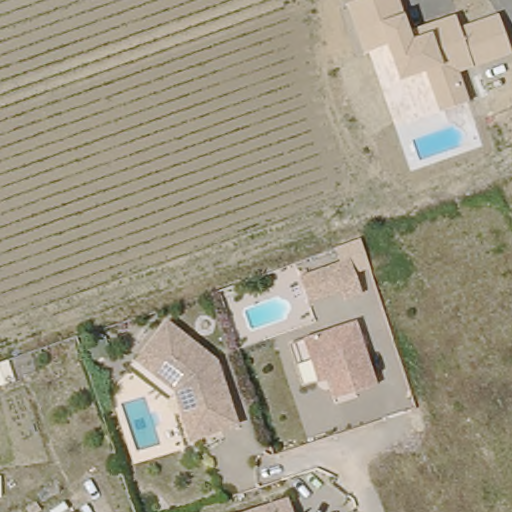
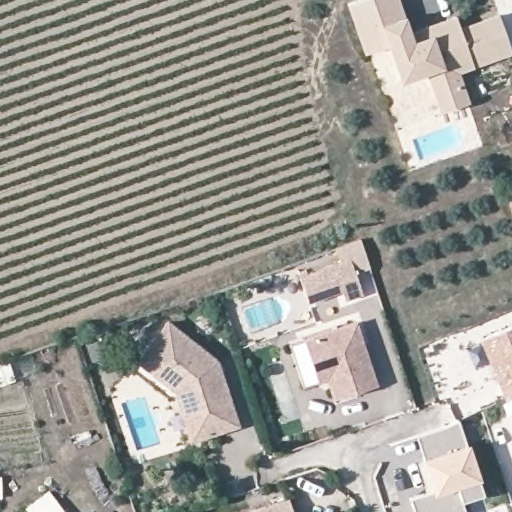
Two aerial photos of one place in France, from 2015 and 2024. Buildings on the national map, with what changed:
unchanged [(387,45),(364,53),(347,4),(360,0),(399,0),(409,31),(458,15),(462,27),(499,14),(512,55),(512,56),(460,73),(471,102),(439,112),(426,73),(399,81),(387,45)]
new [(512,184),(511,182),(512,182),(512,184)]
unchanged [(325,298),(326,301),(309,306),(300,277),(351,259),(364,296),(346,303),(341,293),(325,298)]
unchanged [(169,387),(132,358),(162,319),(211,358),(216,376),(231,422),(204,430),(185,436),(169,387)]
unchanged [(315,384),(313,377),(301,342),(353,325),(358,340),(360,346),(374,388),(339,399),(331,401),(324,380),(315,384)]
new [(512,396),(505,399),(479,339),(512,326),(512,396)]
new [(466,512),(415,512),(411,498),(427,494),(415,460),(424,457),(417,435),(459,421),(467,446),(482,492),(462,499),(466,512)]
unchanged [(291,512),(250,512),(287,500),(291,512)]

